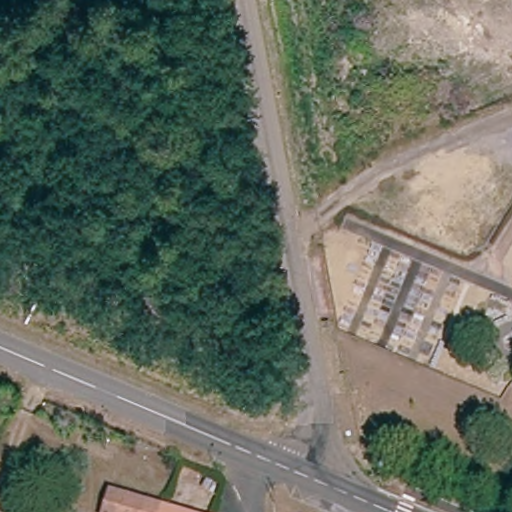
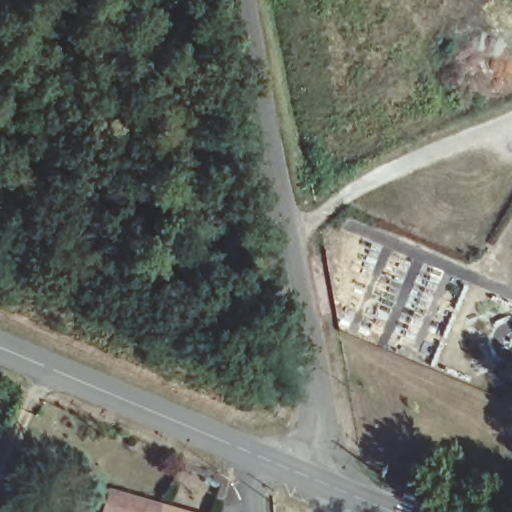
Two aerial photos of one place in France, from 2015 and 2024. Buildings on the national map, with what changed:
unchanged [(107,512),(113,492),(167,508),(166,512),(107,512)]
unchanged [(166,512),(167,508),(180,512),(166,512)]

